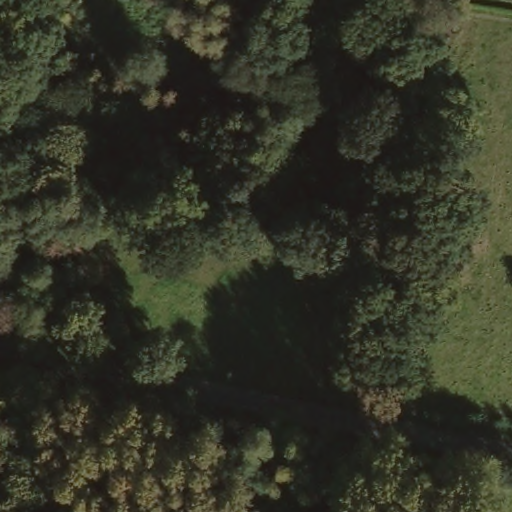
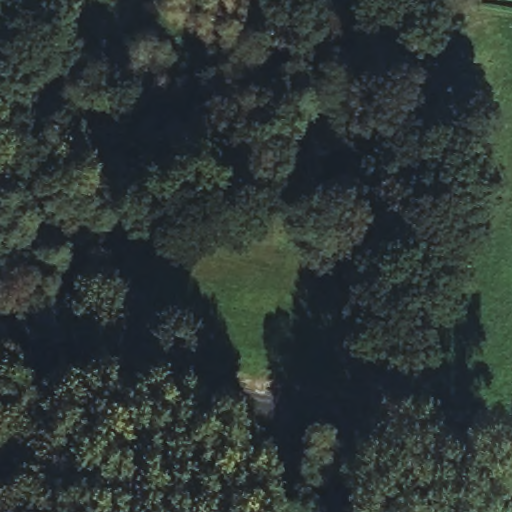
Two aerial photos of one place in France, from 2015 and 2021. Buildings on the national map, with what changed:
[]

